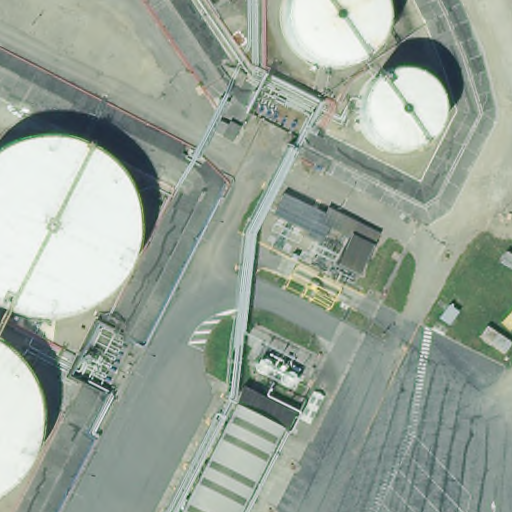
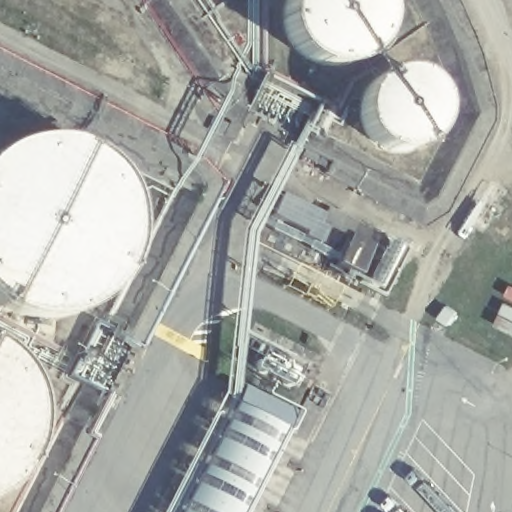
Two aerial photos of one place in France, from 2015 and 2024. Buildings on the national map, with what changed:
unchanged [(219,396),(227,375),(290,407),(282,424),(237,512),(177,512),(232,405),(219,396)]

